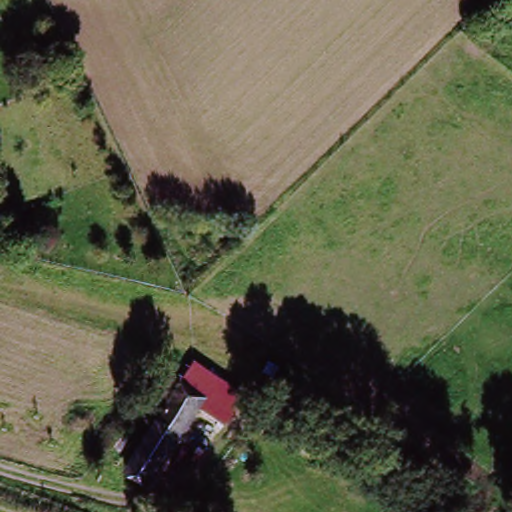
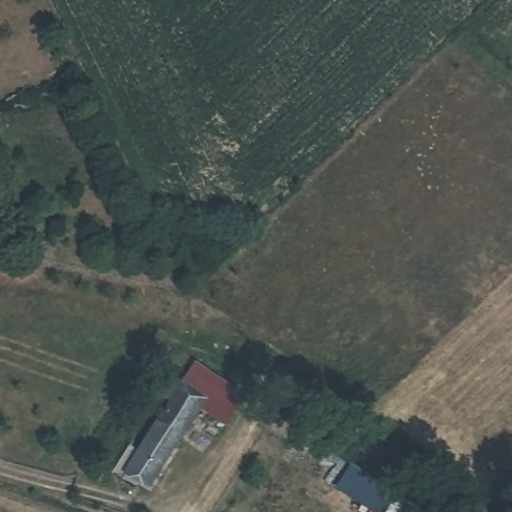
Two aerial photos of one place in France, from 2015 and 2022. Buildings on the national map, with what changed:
unchanged [(178,395),(170,388),(180,373),(198,385),(207,372),(220,381),(198,415),(157,475),(135,461),(178,395)]
unchanged [(244,395),(222,429),(198,415),(220,381),(244,395)]

